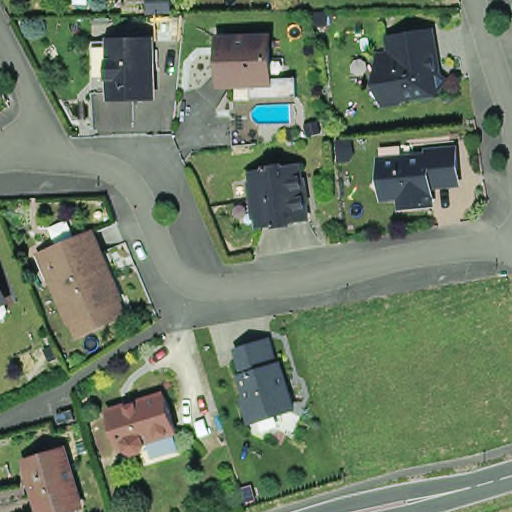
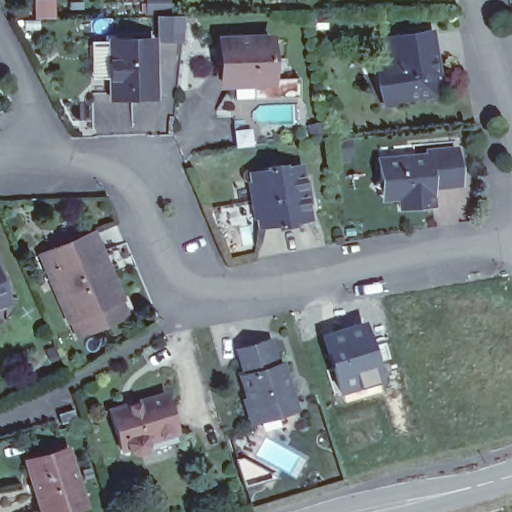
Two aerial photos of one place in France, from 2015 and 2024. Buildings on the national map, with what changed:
unchanged [(146,16),(146,2),(123,3),(123,0),(171,0),(171,16),(146,16)]
unchanged [(123,88),(103,88),(101,37),(122,36),(123,88)]
unchanged [(162,36),(163,91),(123,91),(123,88),(122,36),(162,36)]
unchanged [(384,101),(384,100),(382,99),(381,98),(380,97),(379,96),(378,95),(377,92),(376,91),(375,88),(375,85),(375,84),(375,80),(375,78),(375,76),(376,75),(376,74),(377,71),(378,71),(378,70),(379,69),(377,61),(389,59),(386,43),(396,41),(431,36),(437,79),(446,85),(436,99),(400,105),(385,107),(384,101)]
unchanged [(275,38),(277,83),(239,85),(234,80),(227,80),(222,75),(221,68),(226,63),(225,40),(275,38)]
unchanged [(433,156),(432,151),(462,149),(464,178),(436,180),(438,205),(407,208),(406,197),(395,198),(380,185),(387,177),(386,167),(385,160),(405,158),(419,156),(433,156)]
unchanged [(241,172),(257,170),(257,167),(274,164),(274,166),(290,164),(294,185),(297,185),(299,197),(296,198),(300,219),(283,222),(284,225),(267,227),(267,225),(250,228),(241,172)]
unchanged [(122,298),(119,299),(126,315),(79,335),(72,319),(70,320),(42,254),(94,233),(122,298)]
unchanged [(2,261),(0,262),(0,257),(2,261)]
unchanged [(10,296),(0,300),(0,273),(10,296)]
new [(364,320),(381,381),(339,394),(320,333),(364,320)]
unchanged [(294,405),(291,411),(278,415),(272,411),(255,417),(249,413),(246,404),(249,397),(242,375),(246,373),(239,349),(266,340),(271,339),(279,364),(282,363),(294,405)]
unchanged [(178,431),(147,440),(148,445),(145,451),(137,454),(130,450),(129,446),(122,448),(111,412),(167,394),(178,431)]
unchanged [(62,424),(59,414),(75,409),(78,419),(62,424)]
unchanged [(28,456),(67,444),(83,497),(45,508),(28,456)]

